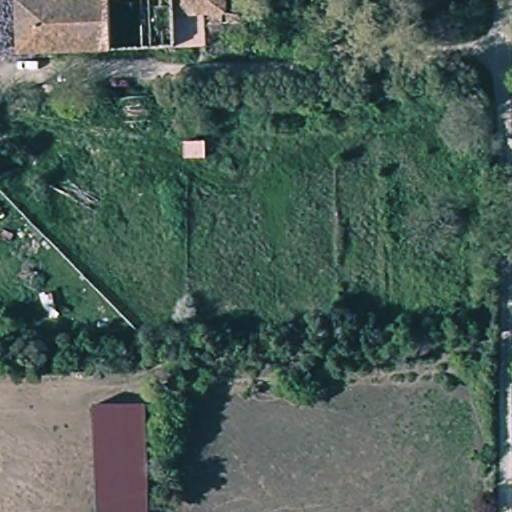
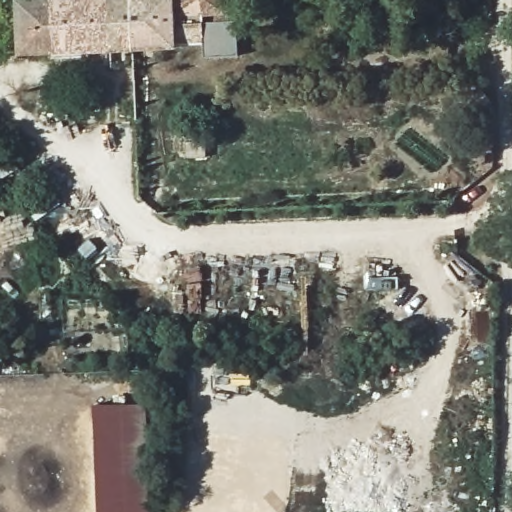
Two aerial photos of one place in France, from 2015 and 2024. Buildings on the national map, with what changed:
unchanged [(109,50),(15,54),(13,0),(23,0),(106,0),(109,50)]
unchanged [(171,47),(109,50),(106,0),(168,0),(171,47)]
unchanged [(201,27),(202,46),(171,47),(168,0),(199,0),(201,27)]
unchanged [(221,6),(244,5),(245,25),(201,27),(199,0),(221,0),(221,6)]
unchanged [(0,145),(0,132),(1,132),(1,144),(0,145)]
unchanged [(96,512),(96,403),(147,401),(147,512),(96,512)]

